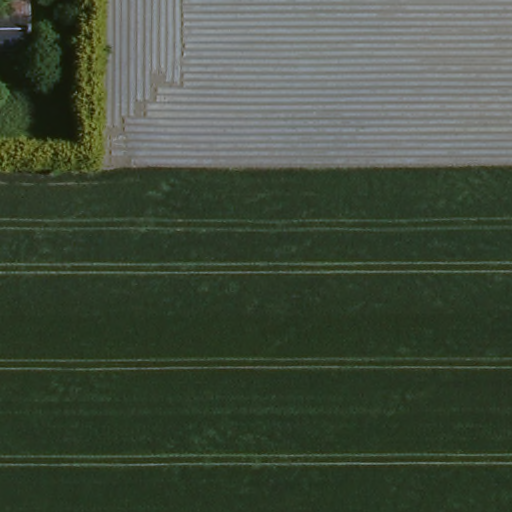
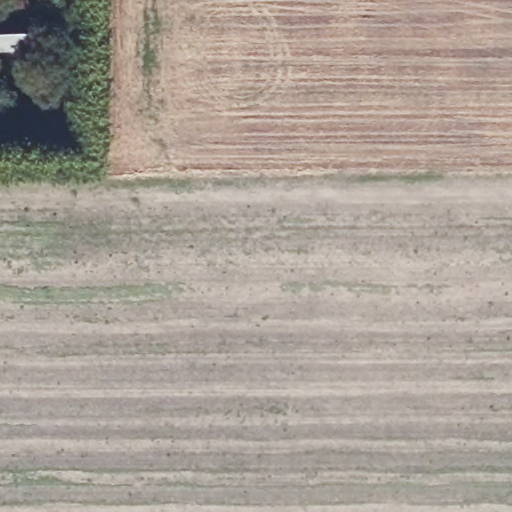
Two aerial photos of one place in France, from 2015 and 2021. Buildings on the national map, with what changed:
unchanged [(37,0),(37,16),(37,46),(0,46),(0,0),(37,0)]

